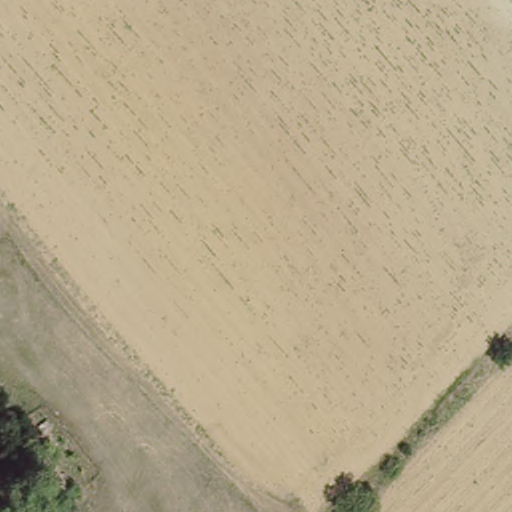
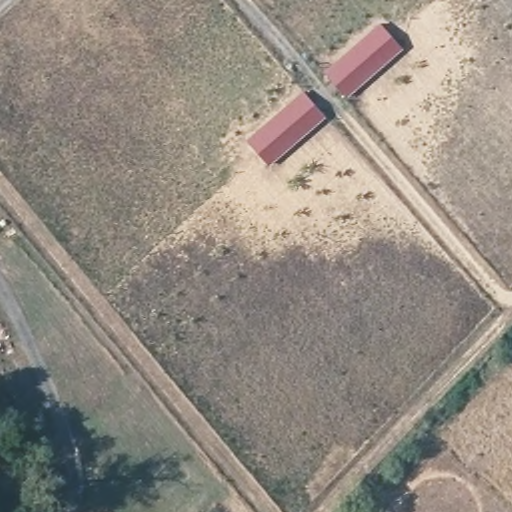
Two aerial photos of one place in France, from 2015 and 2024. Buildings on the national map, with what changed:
new [(346,100),(323,72),(381,22),(405,49),(346,100)]
new [(304,90),(327,117),(269,167),(246,140),(304,90)]

